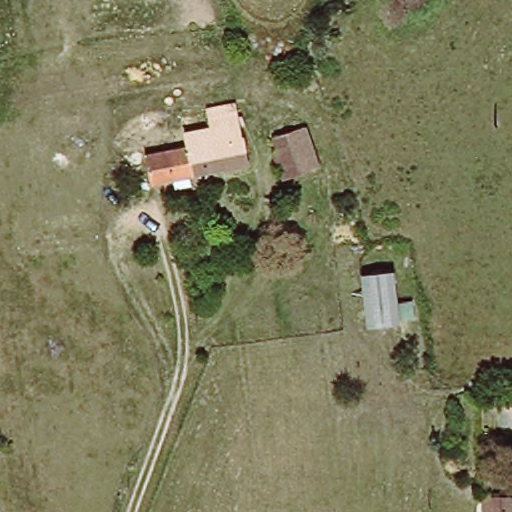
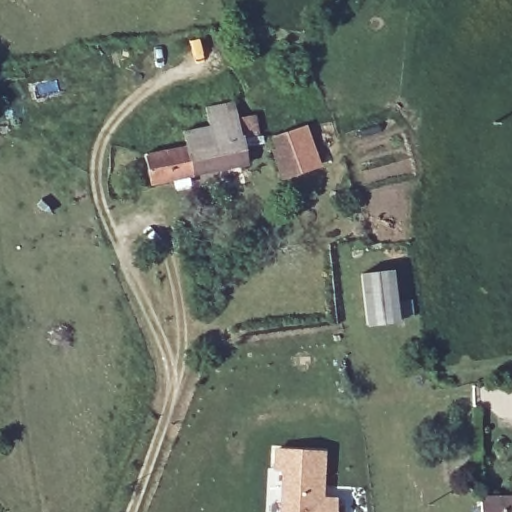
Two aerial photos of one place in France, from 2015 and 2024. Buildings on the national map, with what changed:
unchanged [(242,139),(246,138),(250,168),(196,178),(195,169),(185,171),(183,160),(193,158),(189,134),(186,115),(209,110),(235,106),(242,139)]
unchanged [(282,181),(272,154),(275,153),(272,140),(289,134),(305,130),(316,167),(301,172),(301,174),(282,181)]
unchanged [(360,275),(394,270),(400,324),(366,329),(360,275)]
new [(321,452),(318,498),(332,499),(332,512),(278,512),(280,470),(271,470),(273,450),(321,452)]
unchanged [(512,498),(512,512),(482,512),(482,498),(512,498)]

